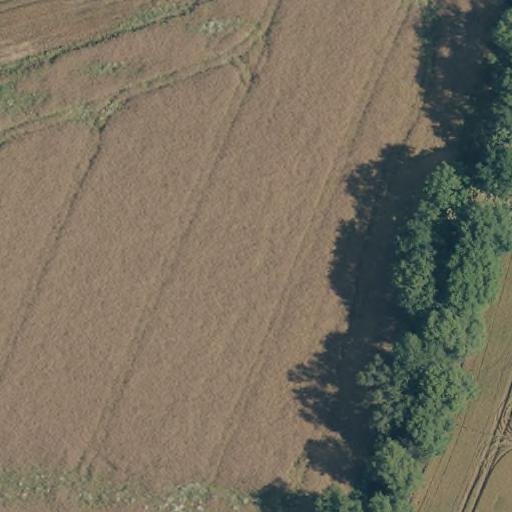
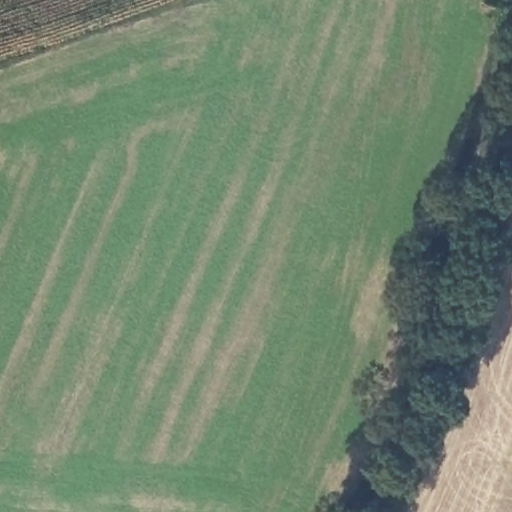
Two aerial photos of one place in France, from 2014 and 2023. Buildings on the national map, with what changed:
unchanged [(502,1),(503,0),(512,0),(512,5),(502,1)]

